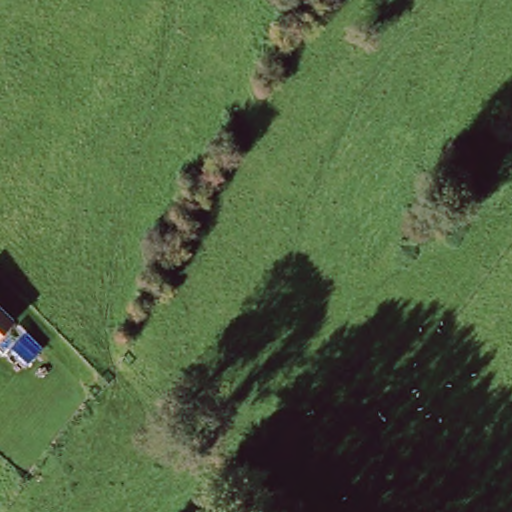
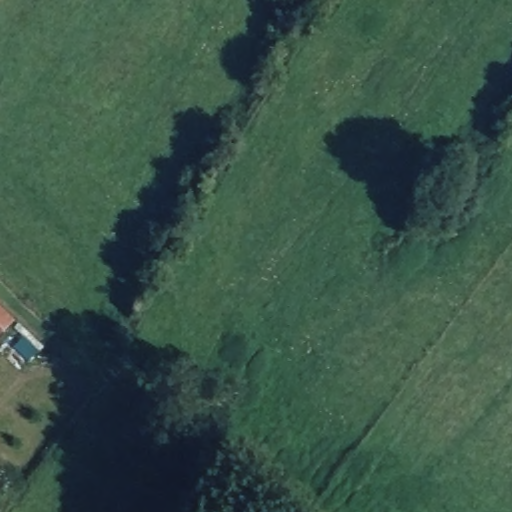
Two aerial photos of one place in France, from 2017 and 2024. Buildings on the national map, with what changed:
unchanged [(0,338),(0,307),(15,321),(0,338)]

